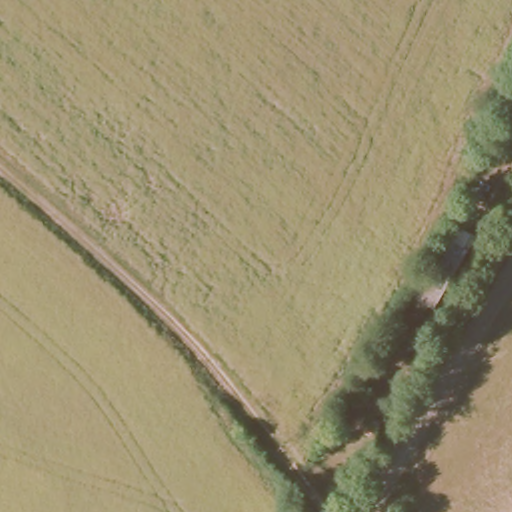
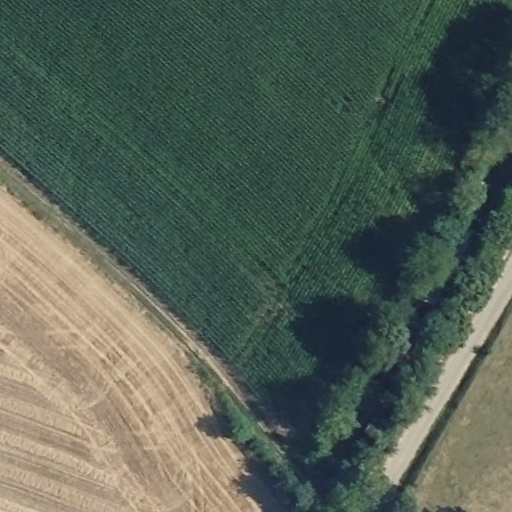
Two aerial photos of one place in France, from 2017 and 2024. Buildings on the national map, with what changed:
unchanged [(412,297),(457,219),(480,234),(438,310),(412,297)]

